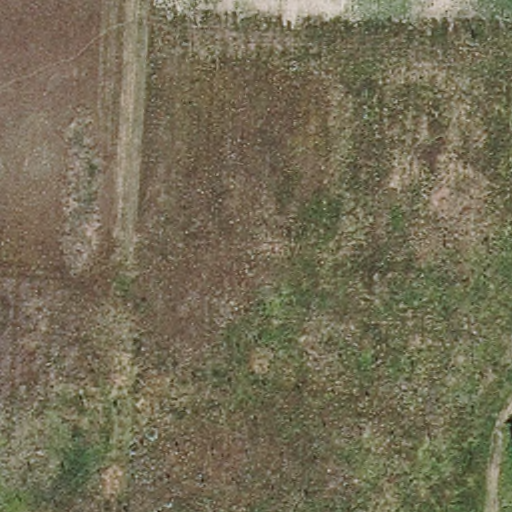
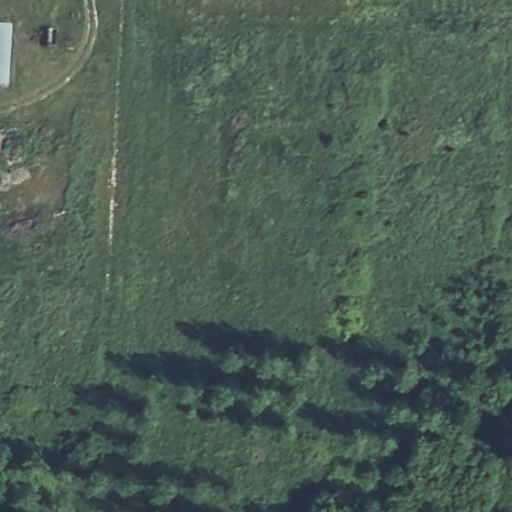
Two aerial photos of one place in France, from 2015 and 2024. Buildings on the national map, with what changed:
new [(8,87),(0,86),(0,23),(11,24),(8,87)]

